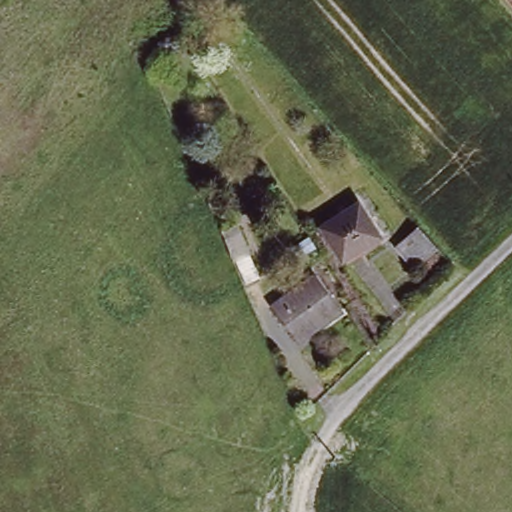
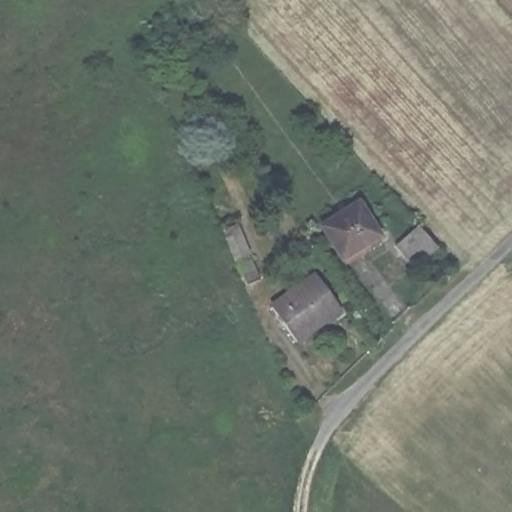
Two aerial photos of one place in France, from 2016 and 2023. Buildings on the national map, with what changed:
unchanged [(330,231),(365,209),(375,225),(385,240),(349,262),(344,254),(330,231)]
unchanged [(238,224),(251,252),(237,258),(224,230),(238,224)]
unchanged [(417,270),(396,247),(417,226),(438,250),(417,270)]
unchanged [(297,258),(291,247),(309,235),(316,246),(297,258)]
unchanged [(257,268),(262,278),(249,284),(237,261),(251,254),(257,268)]
unchanged [(268,305),(312,273),(337,307),(293,339),(268,305)]

